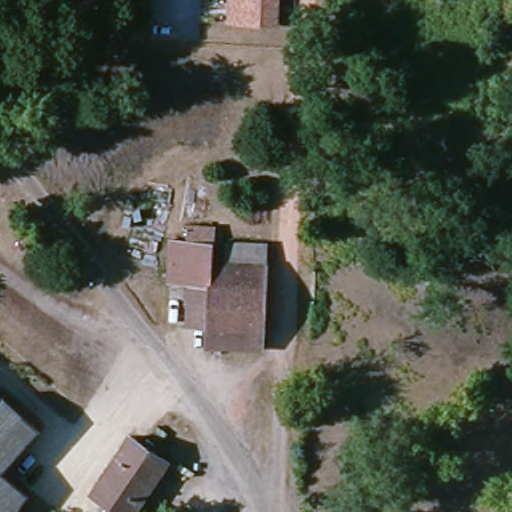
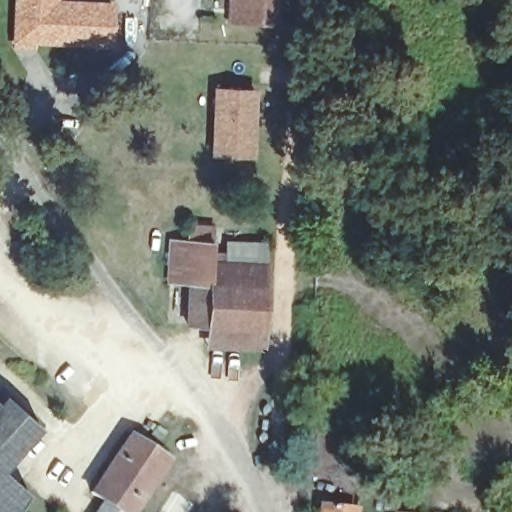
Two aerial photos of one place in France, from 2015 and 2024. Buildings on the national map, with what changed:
new [(37,48),(12,47),(12,43),(14,0),(93,0),(116,1),(114,48),(37,45),(37,48)]
unchanged [(232,19),(233,0),(278,0),(277,23),(232,19)]
new [(258,88),(256,160),(211,158),(214,86),(258,88)]
unchanged [(207,327),(187,325),(190,283),(170,282),(172,241),(190,242),(191,227),(215,228),(214,244),(214,254),(227,255),(227,244),(267,246),(267,258),(262,330),(207,327)]
unchanged [(262,349),(207,347),(207,327),(262,330),(262,349)]
unchanged [(14,400),(51,434),(41,445),(12,476),(39,500),(30,512),(0,512),(0,401),(7,408),(14,400)]
unchanged [(111,502),(96,491),(135,434),(171,459),(134,512),(104,512),(111,502)]
unchanged [(362,509),(362,512),(328,512),(329,506),(362,509)]

